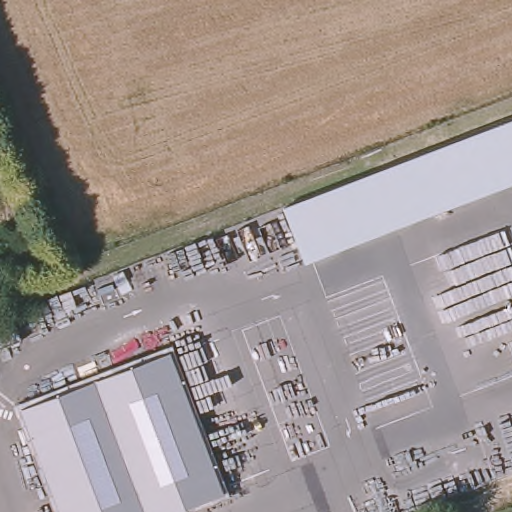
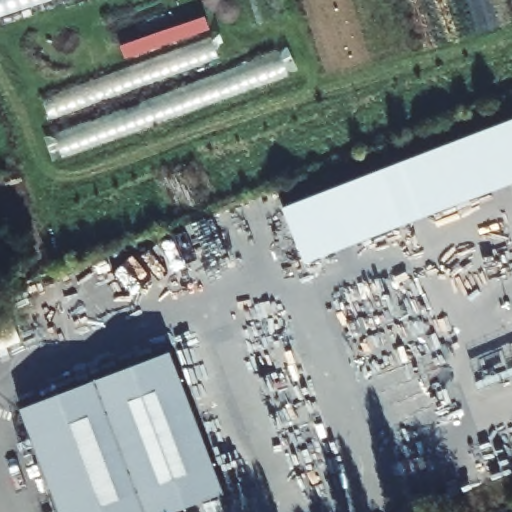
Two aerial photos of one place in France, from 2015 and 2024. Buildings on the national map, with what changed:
new [(0,17),(0,0),(52,0),(0,17)]
new [(42,100),(212,37),(220,58),(50,120),(42,100)]
new [(55,133),(280,51),(289,76),(63,159),(55,133)]
unchanged [(512,120),(512,190),(297,269),(272,210),(512,120)]
unchanged [(44,370),(86,354),(95,377),(168,350),(220,490),(160,512),(62,512),(22,405),(52,393),(44,370)]

